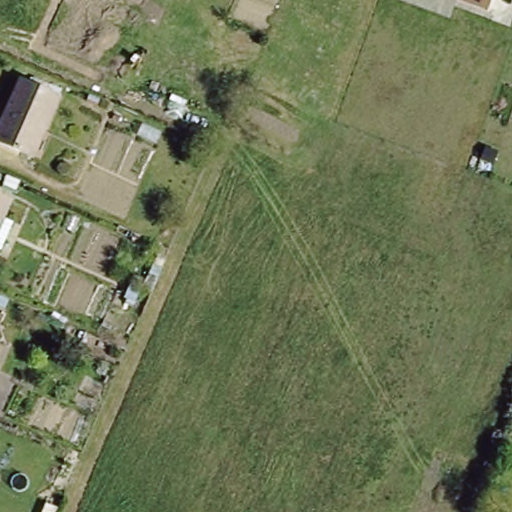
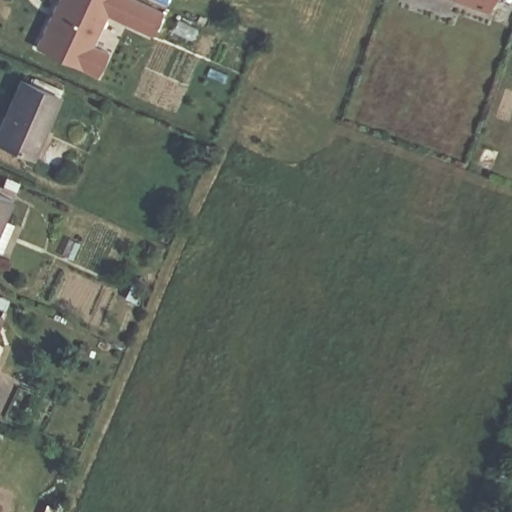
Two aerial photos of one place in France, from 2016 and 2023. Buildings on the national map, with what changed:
new [(155,35),(118,20),(106,48),(111,50),(100,76),(38,49),(59,0),(141,0),(165,10),(155,35)]
unchanged [(483,8),(462,0),(486,0),(483,8)]
unchanged [(50,125),(45,123),(34,150),(0,135),(0,133),(25,76),(64,93),(50,125)]
new [(110,189),(87,179),(110,122),(133,131),(110,189)]
unchanged [(10,196),(0,218),(0,192),(10,196)]
unchanged [(2,307),(0,313),(0,306),(2,307)]

